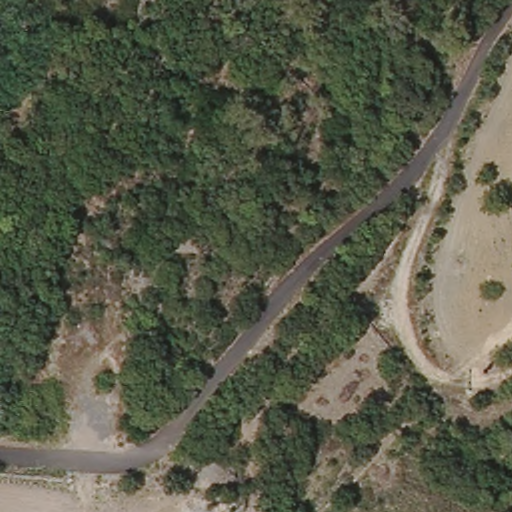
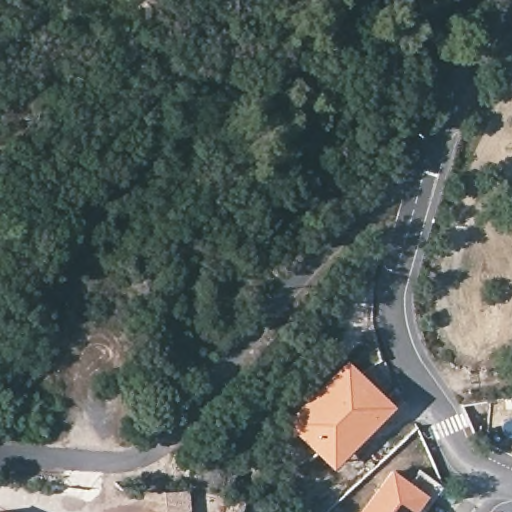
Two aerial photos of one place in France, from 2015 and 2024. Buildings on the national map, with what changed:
new [(311,389),(346,359),(394,404),(331,468),(284,420),(311,389)]
new [(415,512),(360,512),(392,469),(410,482),(421,472),(442,487),(432,500),(427,496),(415,512)]
new [(161,493),(186,495),(184,512),(159,512),(161,493)]
new [(0,505),(14,512),(0,512),(0,505)]

